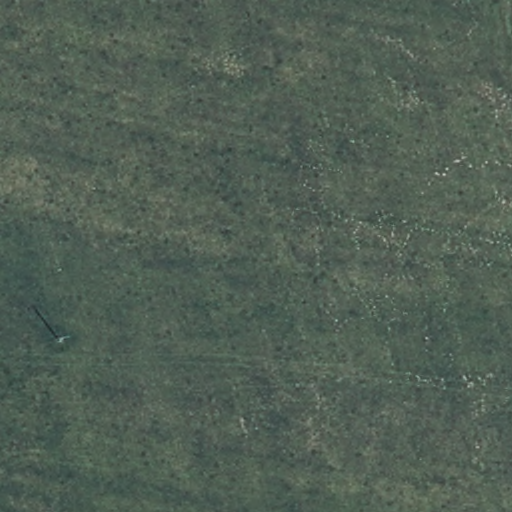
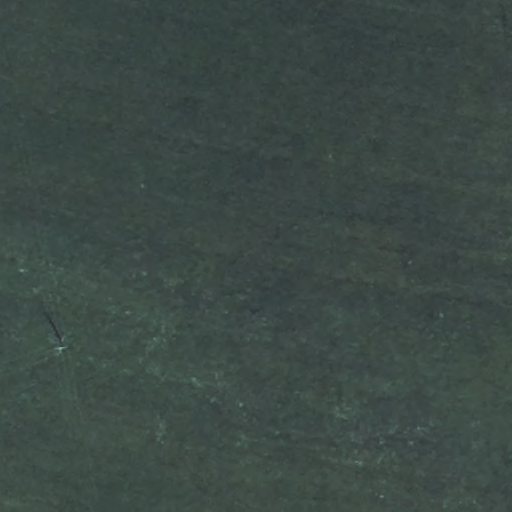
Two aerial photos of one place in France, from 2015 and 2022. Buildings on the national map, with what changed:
[]

